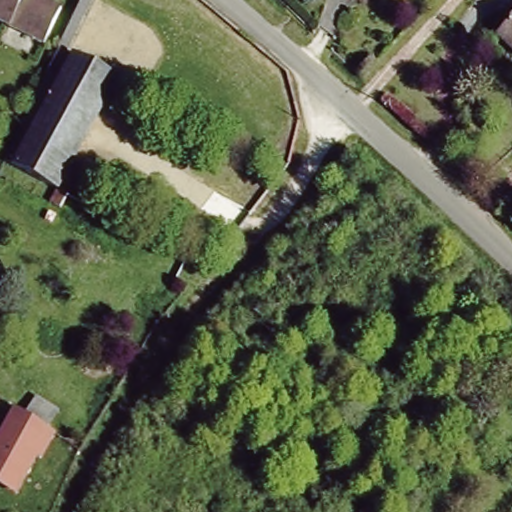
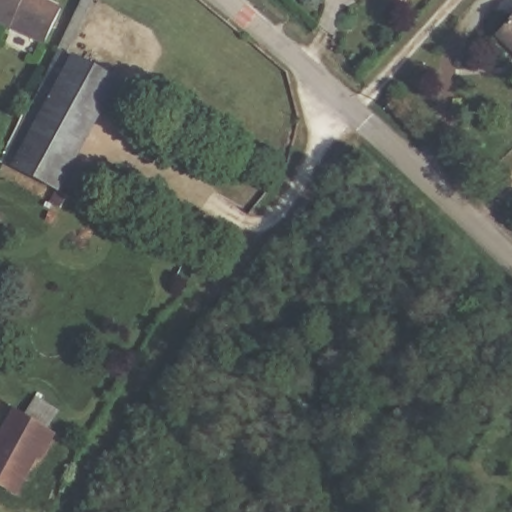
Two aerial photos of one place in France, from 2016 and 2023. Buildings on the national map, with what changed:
unchanged [(44,44),(0,22),(0,0),(38,0),(60,10),(44,44)]
unchanged [(82,0),(91,0),(67,51),(117,79),(57,188),(5,159),(23,122),(82,0)]
unchanged [(497,35),(512,18),(512,49),(497,35)]
unchanged [(67,194),(60,206),(50,201),(57,188),(67,194)]
unchanged [(55,433),(39,459),(35,457),(14,493),(0,485),(0,436),(15,408),(39,423),(55,433)]

